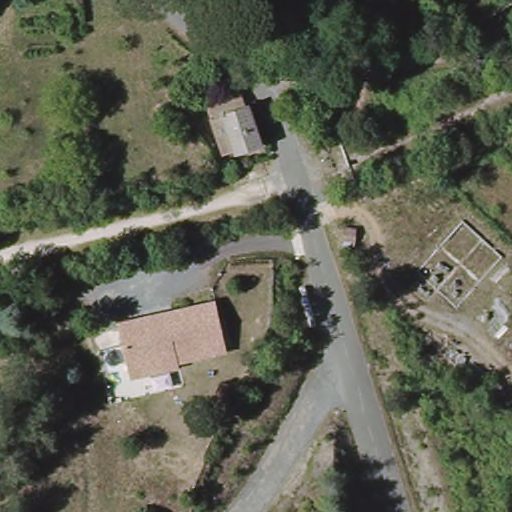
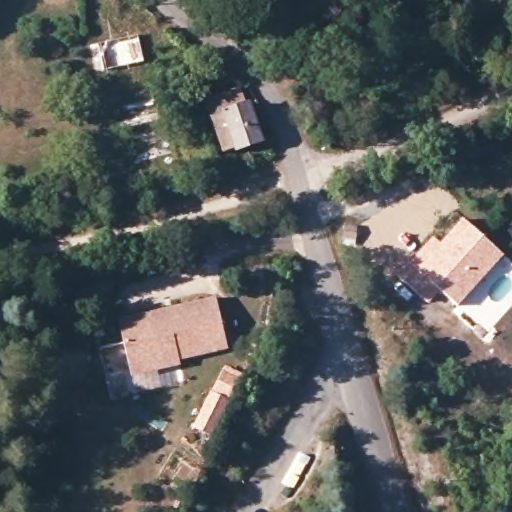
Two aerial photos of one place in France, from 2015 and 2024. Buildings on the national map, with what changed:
unchanged [(267,153),(245,159),(231,163),(221,128),(216,112),(230,107),(252,102),(257,118),(267,153)]
new [(432,237),(439,243),(462,218),(503,256),(457,305),(439,291),(428,302),(396,273),(432,237)]
unchanged [(117,320),(216,298),(227,351),(178,362),(179,367),(131,377),(117,320)]

